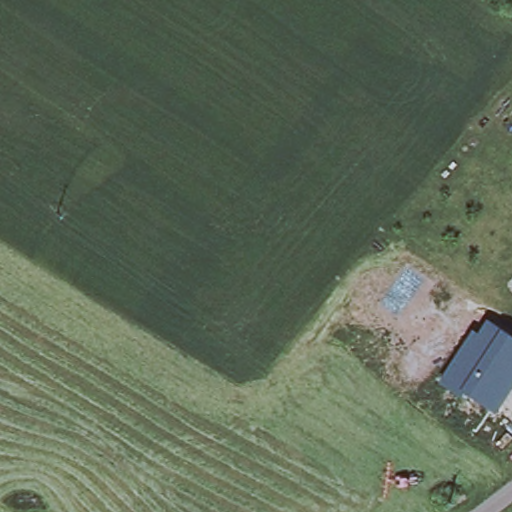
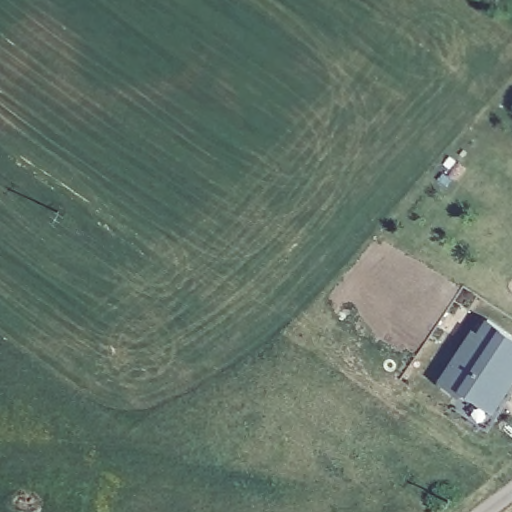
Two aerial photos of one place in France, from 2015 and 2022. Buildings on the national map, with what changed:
unchanged [(477,332),(484,320),(512,337),(512,388),(494,411),(466,393),(462,398),(437,382),(472,331),(477,332)]

